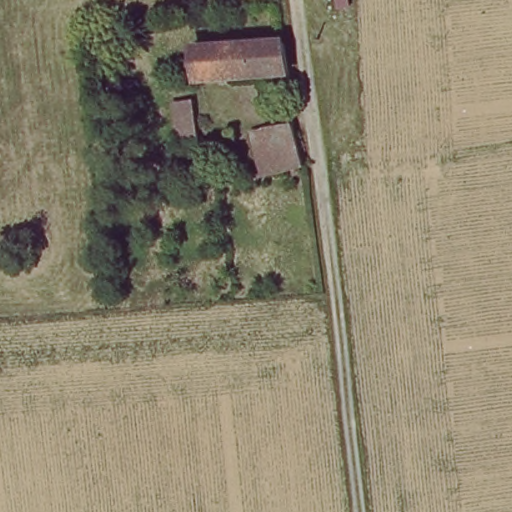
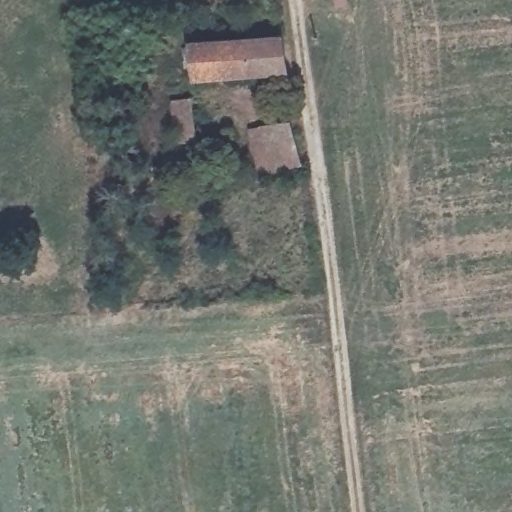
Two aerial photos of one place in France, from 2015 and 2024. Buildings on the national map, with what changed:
unchanged [(281,71),(191,79),(188,47),(278,40),(281,71)]
unchanged [(172,103),(190,101),(193,144),(176,145),(172,103)]
unchanged [(249,131),(261,129),(288,123),(299,164),(271,169),(259,171),(249,131)]

